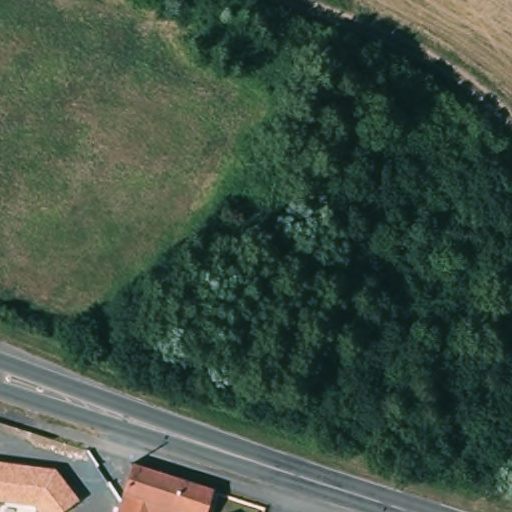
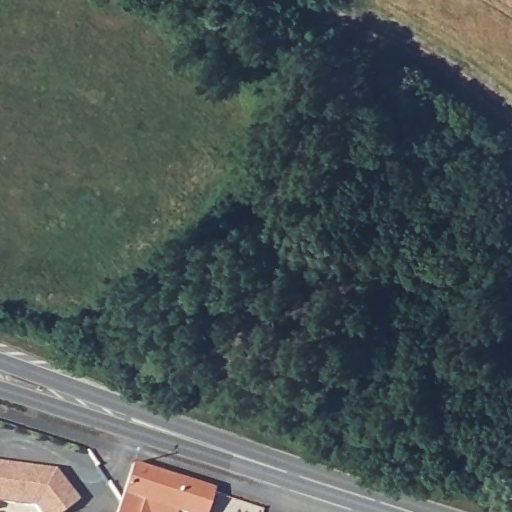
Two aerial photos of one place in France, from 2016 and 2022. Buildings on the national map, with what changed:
unchanged [(80,498),(62,512),(40,512),(35,506),(0,501),(0,462),(57,471),(80,498)]
unchanged [(176,480),(213,492),(205,512),(150,512),(151,507),(142,504),(139,512),(115,512),(130,465),(176,480)]

